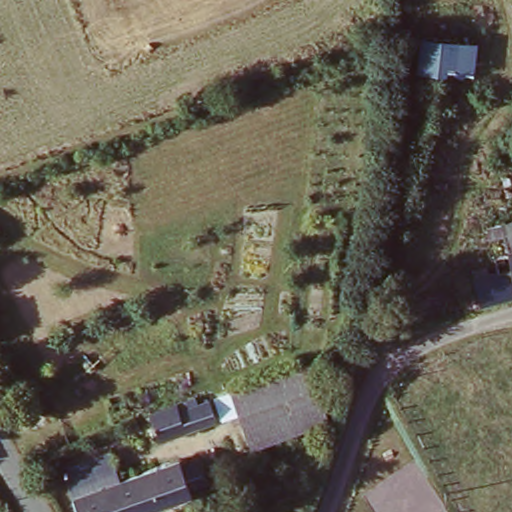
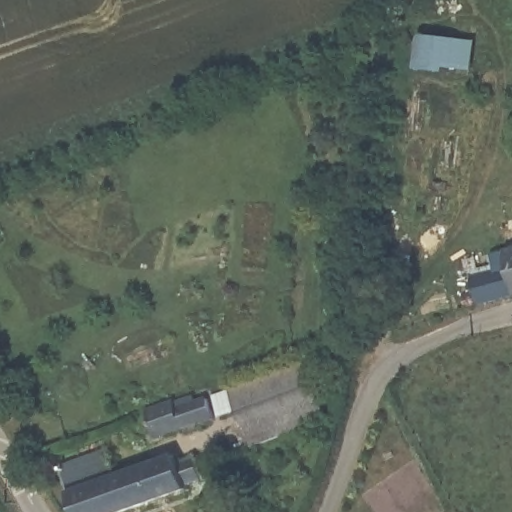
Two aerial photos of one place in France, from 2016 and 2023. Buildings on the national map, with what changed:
unchanged [(415,72),(417,36),(476,43),(472,76),(415,72)]
unchanged [(483,277),(503,272),(501,257),(512,255),(512,304),(476,312),(473,295),(486,291),(483,277)]
unchanged [(313,361),(332,416),(238,451),(219,395),(313,361)]
unchanged [(187,406),(209,398),(216,417),(146,442),(136,417),(185,399),(187,406)]
unchanged [(174,465),(177,475),(195,467),(204,488),(185,496),(186,499),(148,512),(75,512),(62,475),(109,460),(117,485),(174,465)]

